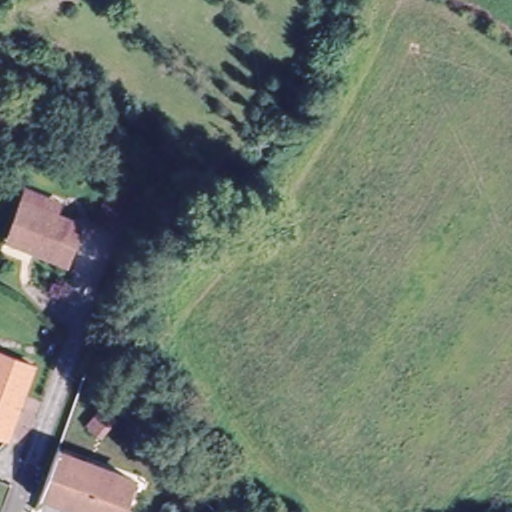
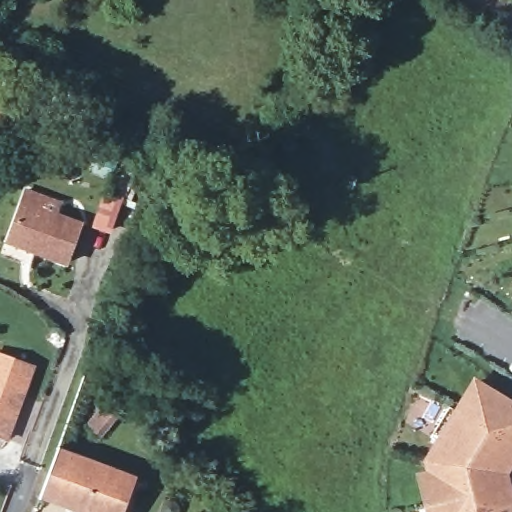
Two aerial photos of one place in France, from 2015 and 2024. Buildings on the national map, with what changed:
unchanged [(0,103),(20,115),(8,135),(0,130),(0,103)]
unchanged [(78,222),(63,260),(5,239),(19,200),(78,222)]
unchanged [(3,440),(0,438),(0,357),(31,370),(3,440)]
new [(508,475),(512,489),(512,512),(424,512),(415,472),(424,470),(422,460),(473,376),(512,399),(512,469),(508,475)]
unchanged [(97,512),(78,505),(44,491),(47,485),(52,471),(61,449),(130,476),(136,478),(123,512),(97,512)]

